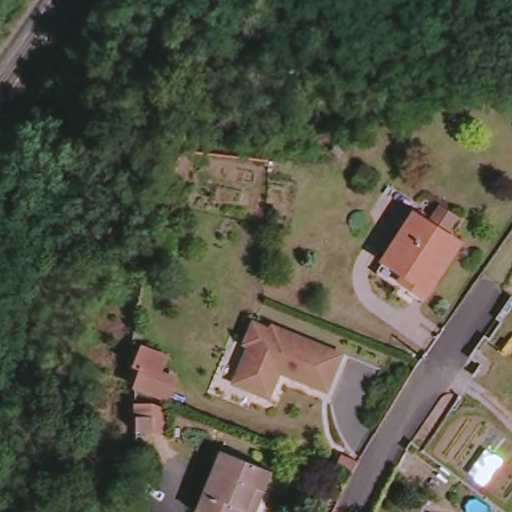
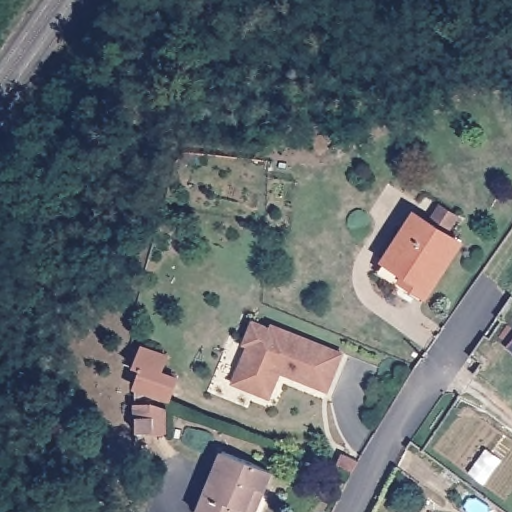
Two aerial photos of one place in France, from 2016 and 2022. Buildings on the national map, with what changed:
unchanged [(445,206),(462,216),(453,230),(436,220),(445,206)]
unchanged [(405,280),(409,275),(388,261),(419,213),(465,242),(430,297),(405,280)]
unchanged [(285,371),(275,397),(239,382),(254,344),(250,342),(258,321),(275,328),(277,325),(347,353),(332,390),(285,371)]
unchanged [(169,400),(136,387),(142,370),(136,367),(137,366),(137,363),(144,347),(167,356),(161,372),(177,378),(169,400)]
unchanged [(135,417),(135,406),(148,405),(148,417),(150,417),(151,432),(136,432),(135,417)]
unchanged [(357,460),(349,473),(335,467),(340,453),(357,460)]
unchanged [(276,476),(268,495),(261,512),(205,512),(227,456),(276,476)]

